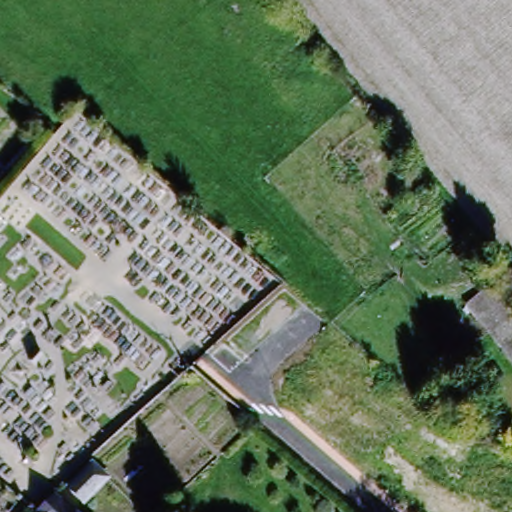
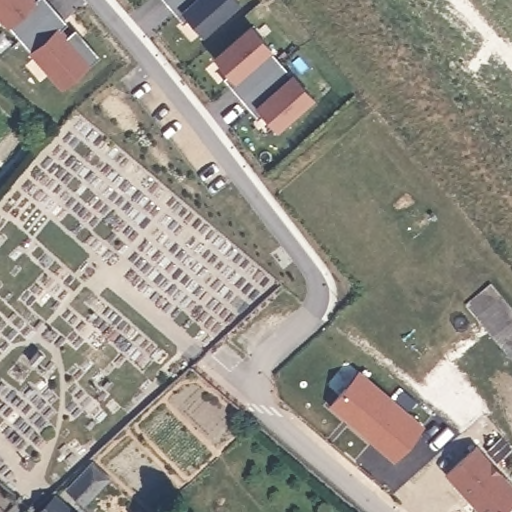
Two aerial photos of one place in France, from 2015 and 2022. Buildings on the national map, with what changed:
new [(54,7),(22,35),(11,22),(10,24),(0,12),(0,0),(48,0),(54,7)]
new [(166,4),(163,0),(170,0),(166,4)]
new [(170,0),(236,0),(240,5),(203,36),(188,18),(182,23),(166,4),(170,0)]
new [(66,22),(61,27),(69,36),(76,30),(82,36),(98,56),(63,86),(31,49),(33,48),(22,35),(54,7),(66,22)]
new [(255,23),(270,41),(268,42),(284,62),(243,97),(227,77),(233,72),(218,54),(255,23)]
new [(284,62),(301,82),(303,80),(317,98),(280,129),(265,111),(259,116),(243,97),(284,62)]
unchanged [(466,312),(493,291),(512,315),(512,341),(507,346),(498,352),(466,312)]
unchanged [(512,341),(512,352),(507,346),(512,341)]
new [(512,488),(512,503),(501,512),(482,512),(445,470),(474,445),(512,488)]
demolished [(494,512),(489,512),(478,497),(506,476),(500,467),(512,459),(512,499),(494,512)]
unchanged [(66,494),(91,468),(107,483),(82,509),(66,494)]
unchanged [(69,511),(68,512),(34,512),(51,494),(69,511)]
unchanged [(71,512),(68,512),(69,511),(71,512)]

